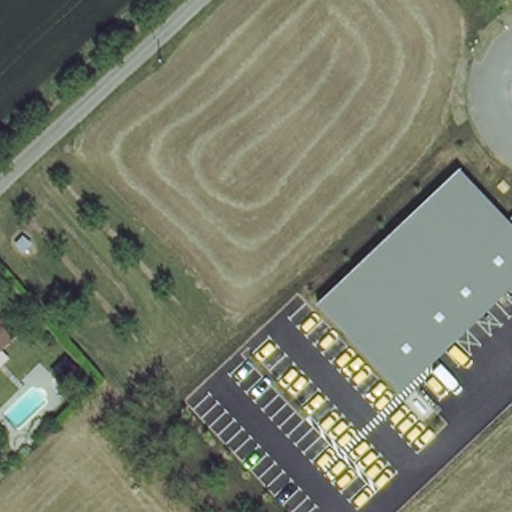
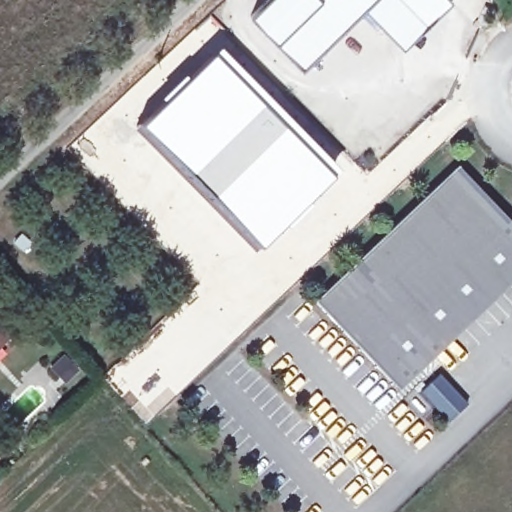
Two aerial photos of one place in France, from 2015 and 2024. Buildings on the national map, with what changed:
new [(450,0),(454,4),(404,52),(366,12),(302,72),(250,17),(267,0),(450,0)]
new [(158,102),(156,100),(174,81),(217,46),(275,107),(337,171),(286,226),(284,224),(256,248),(137,126),(158,102)]
unchanged [(507,220),(512,214),(512,283),(399,391),(315,302),(458,167),(507,220)]
unchanged [(9,333),(0,341),(0,324),(9,333)]

